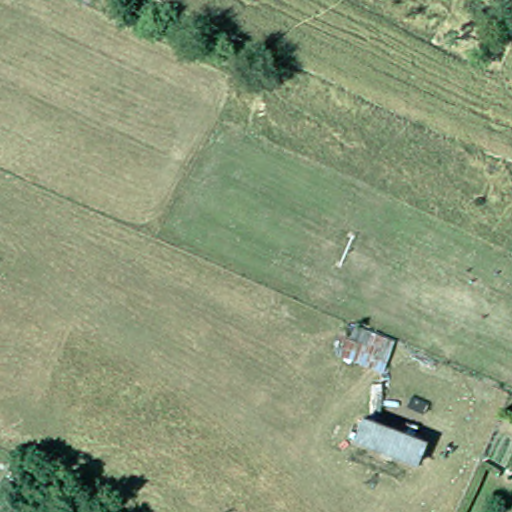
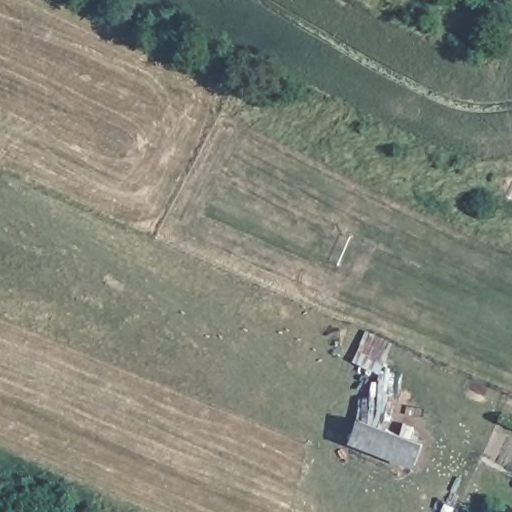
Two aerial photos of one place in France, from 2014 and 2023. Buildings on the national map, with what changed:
unchanged [(380,369),(335,354),(346,321),(392,339),(380,369)]
unchanged [(360,417),(425,440),(416,466),(351,442),(360,417)]

